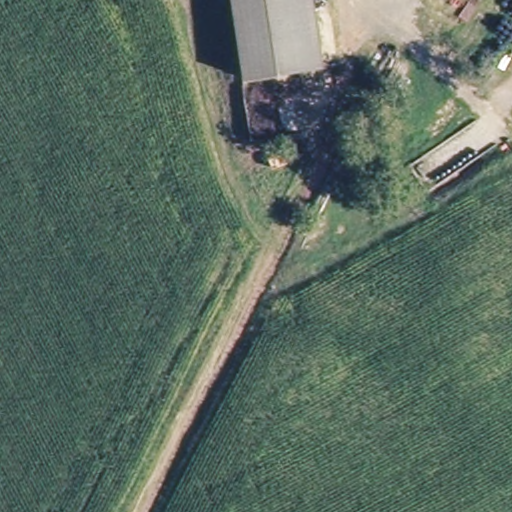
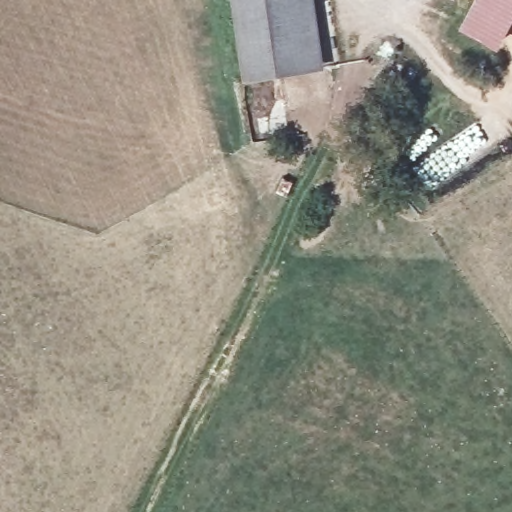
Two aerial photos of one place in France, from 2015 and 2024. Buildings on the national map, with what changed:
unchanged [(236,81),(229,0),(301,0),(305,76),(236,81)]
unchanged [(321,72),(321,76),(305,76),(301,0),(315,0),(321,72)]
new [(496,51),(459,30),(473,0),(512,0),(512,19),(496,51)]

